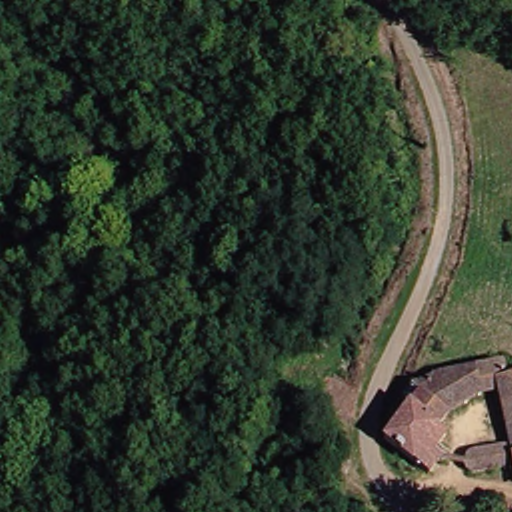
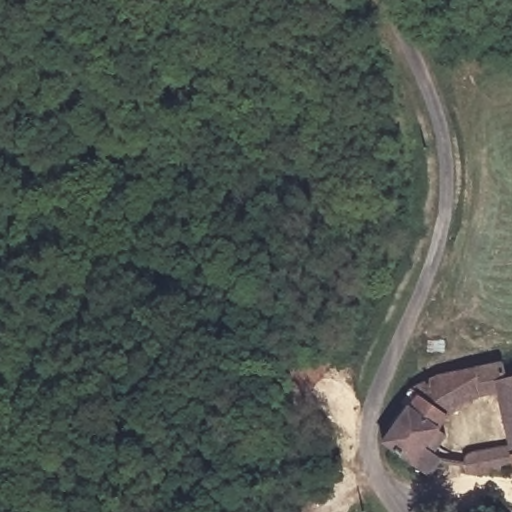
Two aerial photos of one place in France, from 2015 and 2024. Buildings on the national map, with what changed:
unchanged [(506,366),(507,377),(512,376),(512,457),(505,458),(503,447),(496,391),(476,393),(470,372),(506,366)]
unchanged [(476,393),(476,401),(433,421),(427,428),(402,409),(395,400),(403,393),(436,378),(470,372),(476,393)]
unchanged [(427,428),(423,433),(432,442),(423,456),(431,461),(417,476),(374,440),(402,409),(427,428)]
unchanged [(505,458),(507,473),(467,478),(455,474),(458,457),(503,447),(505,458)]
unchanged [(508,486),(507,473),(505,458),(512,457),(512,486),(508,486)]

